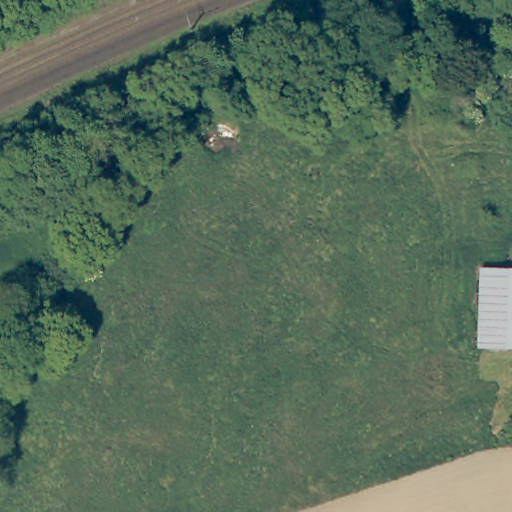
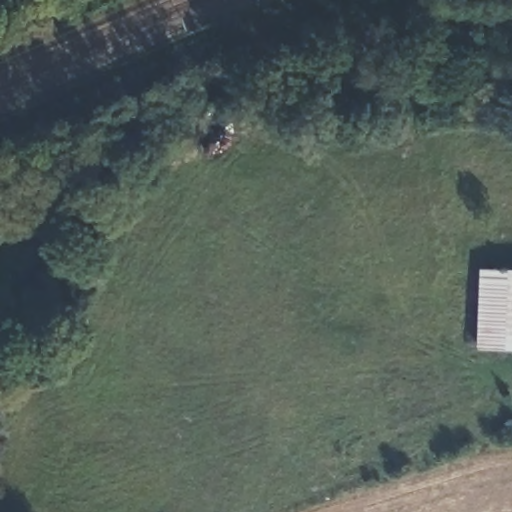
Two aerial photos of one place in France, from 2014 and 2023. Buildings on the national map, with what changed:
unchanged [(501,272),(512,272),(512,351),(485,350),(485,271),(501,272)]

